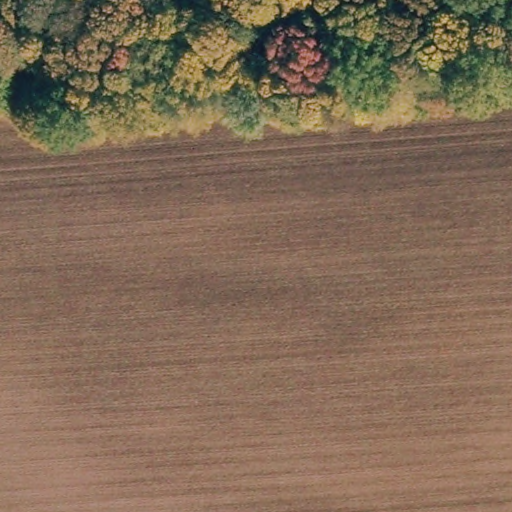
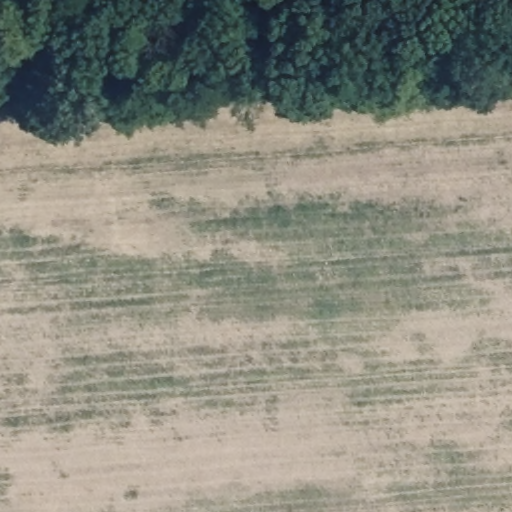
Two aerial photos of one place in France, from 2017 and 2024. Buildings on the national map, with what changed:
unchanged [(444,0),(491,0),(491,23),(447,22),(444,0)]
unchanged [(6,31),(0,32),(0,2),(1,1),(6,31)]

